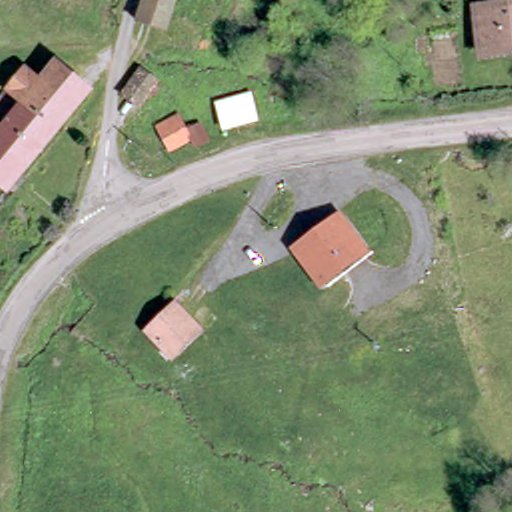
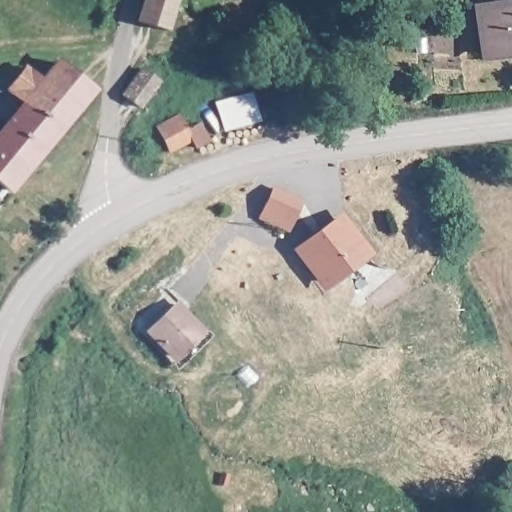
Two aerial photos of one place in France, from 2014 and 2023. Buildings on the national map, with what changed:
unchanged [(147,29),(156,0),(174,0),(183,3),(172,37),(147,29)]
unchanged [(469,4),(512,0),(512,45),(475,50),(469,4)]
unchanged [(56,54),(78,73),(88,81),(70,103),(38,74),(56,54)]
unchanged [(2,183),(0,182),(0,122),(3,118),(0,116),(0,87),(22,61),(38,74),(70,103),(2,183)]
unchanged [(162,84),(139,111),(123,99),(142,71),(162,84)]
unchanged [(250,96),(258,123),(228,132),(220,109),(250,96)]
unchanged [(180,116),(194,140),(172,153),(158,129),(180,116)]
new [(289,232),(259,218),(272,186),(303,199),(289,232)]
unchanged [(348,267),(328,282),(307,252),(321,242),(317,236),(326,229),(331,235),(345,224),(362,248),(366,254),(348,267)]
unchanged [(167,355),(141,326),(170,302),(198,330),(167,355)]

